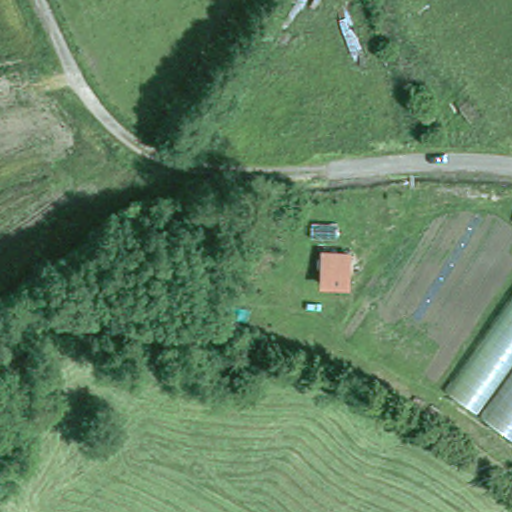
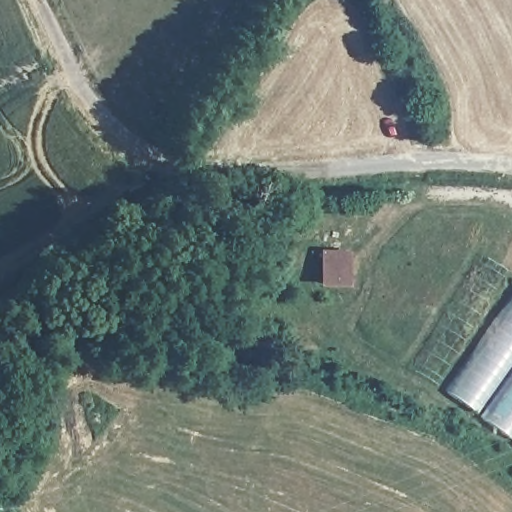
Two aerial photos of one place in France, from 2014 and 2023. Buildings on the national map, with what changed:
unchanged [(355,248),(353,291),(321,289),(320,247),(355,248)]
unchanged [(442,395),(512,293),(512,442),(442,395)]

